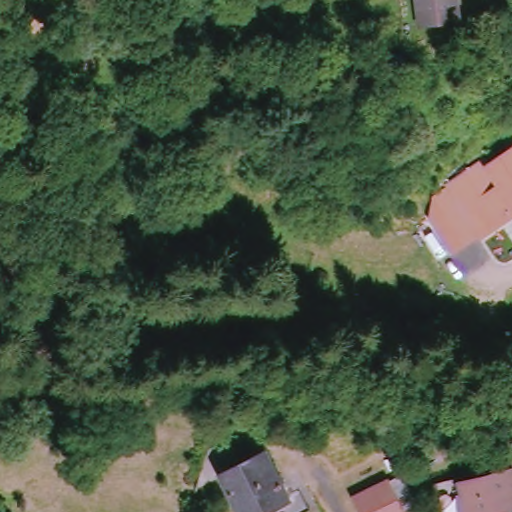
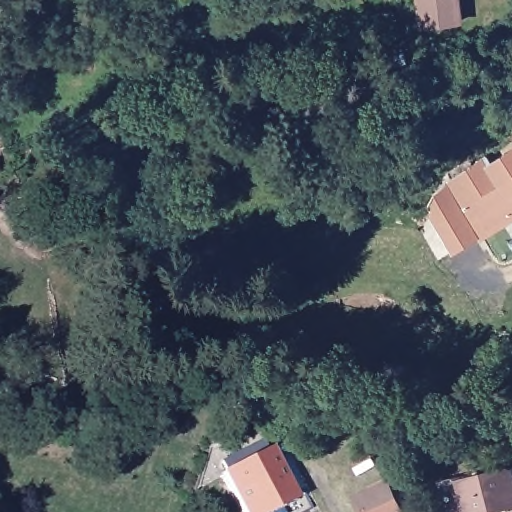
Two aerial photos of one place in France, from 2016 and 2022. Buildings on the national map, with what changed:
unchanged [(458,0),(462,19),(416,30),(411,0),(458,0)]
unchanged [(389,66),(386,54),(406,49),(409,61),(389,66)]
unchanged [(224,165),(233,138),(246,143),(259,147),(255,159),(242,155),(237,170),(224,165)]
unchanged [(481,168),(512,143),(512,222),(480,245),(443,185),(475,159),(481,168)]
unchanged [(452,253),(428,219),(433,197),(445,189),(476,239),(452,253)]
unchanged [(67,279),(52,296),(57,303),(29,334),(12,317),(58,269),(67,279)]
unchanged [(280,512),(237,512),(215,464),(258,443),(280,487),(290,482),(300,502),(280,512)]
unchanged [(458,484),(508,472),(512,484),(512,506),(491,512),(465,512),(458,484)]
unchanged [(351,501),(384,484),(393,503),(407,496),(416,512),(357,512),(351,501)]

